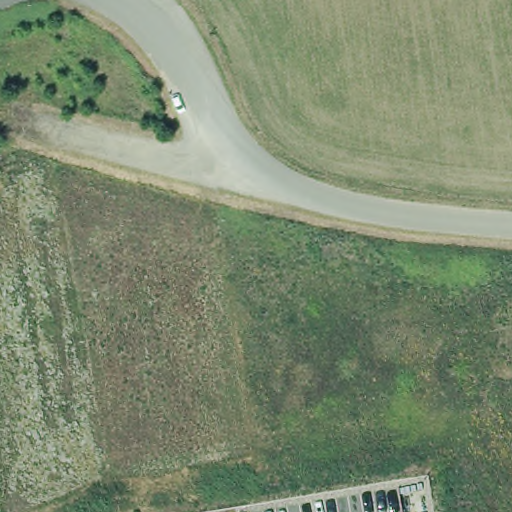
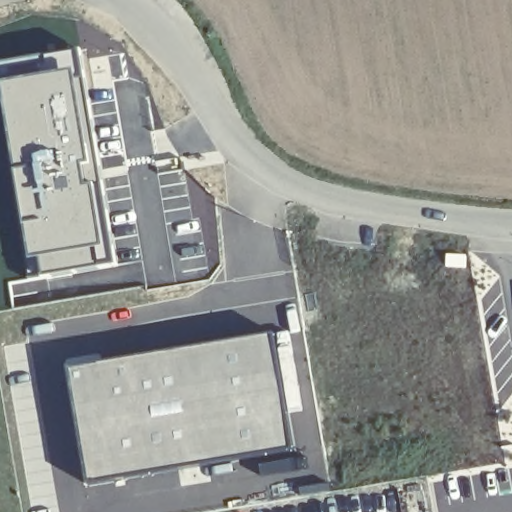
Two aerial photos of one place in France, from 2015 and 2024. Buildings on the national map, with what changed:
new [(80,49),(98,145),(112,247),(41,259),(33,261),(0,84),(0,62),(80,49)]
new [(112,247),(116,265),(44,277),(41,259),(112,247)]
new [(277,334),(289,400),(295,449),(168,473),(91,484),(71,369),(277,334)]

